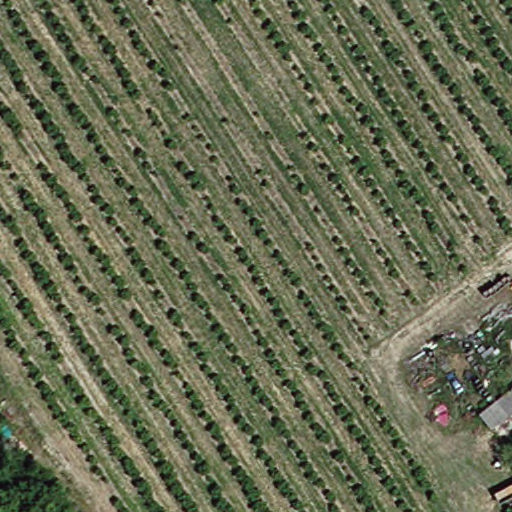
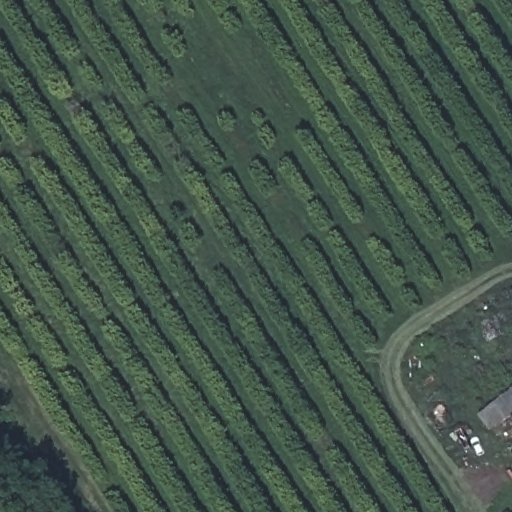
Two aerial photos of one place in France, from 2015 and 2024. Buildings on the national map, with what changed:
unchanged [(500,431),(489,419),(512,399),(512,421),(500,431)]

